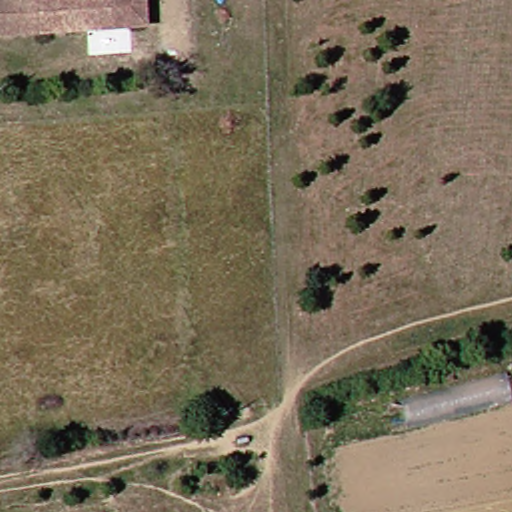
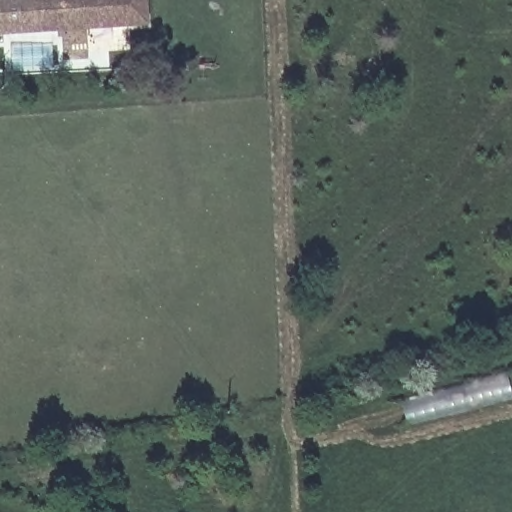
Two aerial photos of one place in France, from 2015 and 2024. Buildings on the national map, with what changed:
unchanged [(0,36),(0,0),(131,0),(133,29),(0,36)]

